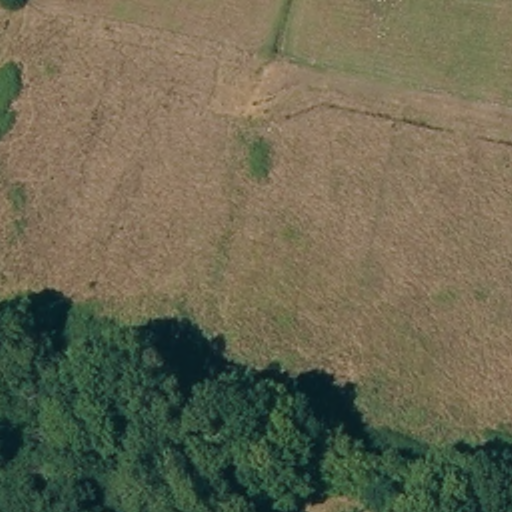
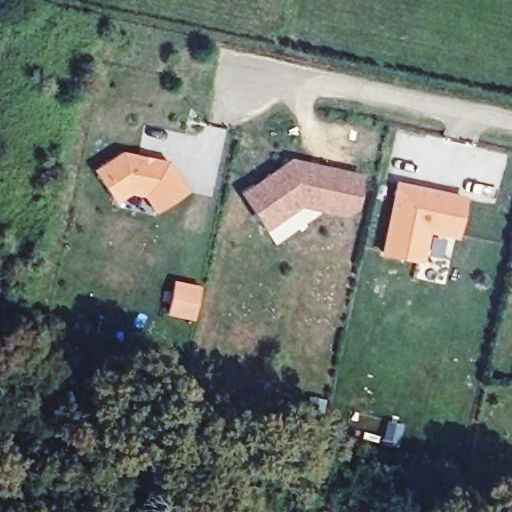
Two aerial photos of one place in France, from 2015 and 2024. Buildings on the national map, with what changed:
new [(154,211),(143,195),(128,194),(115,202),(93,170),(121,152),(168,162),(187,192),(154,211)]
new [(299,206),(264,231),(240,192),(290,158),(361,174),(350,218),(299,206)]
new [(466,197),(458,238),(428,232),(422,263),(380,255),(395,181),(466,197)]
new [(200,286),(193,321),(165,315),(173,280),(200,286)]

